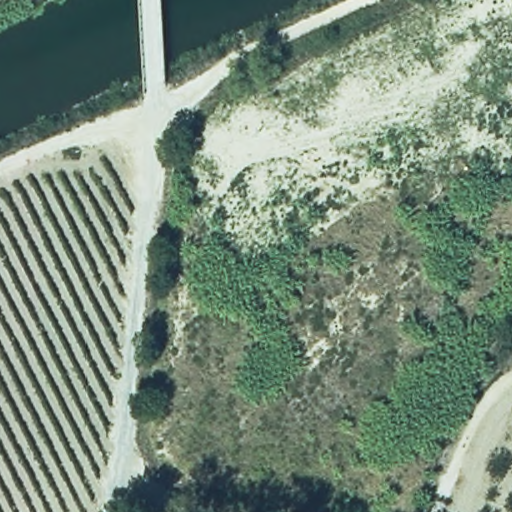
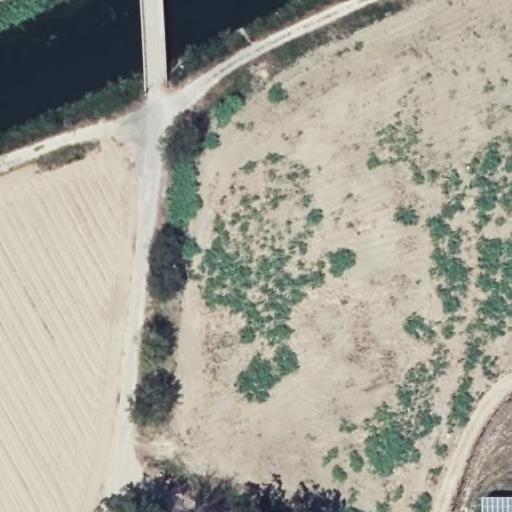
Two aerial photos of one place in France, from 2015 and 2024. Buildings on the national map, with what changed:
new [(512,495),(512,512),(481,512),(481,495),(512,495)]

